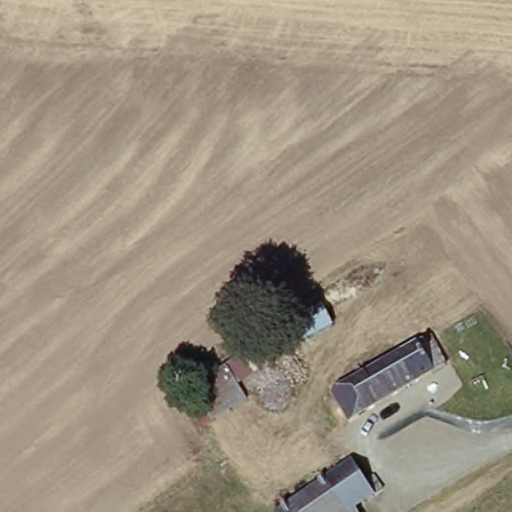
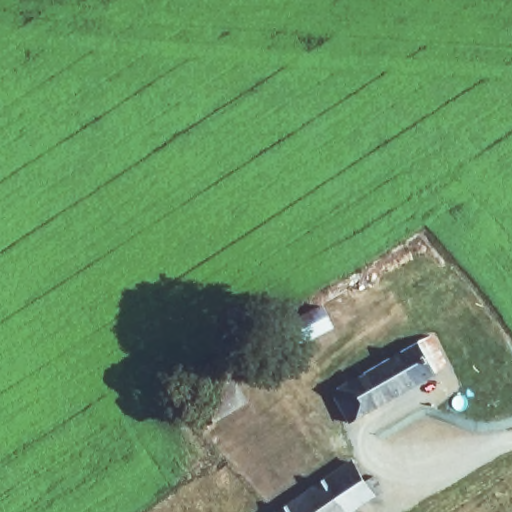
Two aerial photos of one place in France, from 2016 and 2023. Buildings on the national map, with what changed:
unchanged [(327,307),(337,326),(301,346),(290,325),(327,307)]
unchanged [(441,338),(457,368),(360,423),(342,394),(441,338)]
unchanged [(220,358),(226,364),(251,349),(262,368),(237,385),(246,401),(213,421),(187,380),(220,358)]
unchanged [(352,464),(366,484),(375,478),(385,492),(357,511),(357,512),(284,512),(352,464)]

